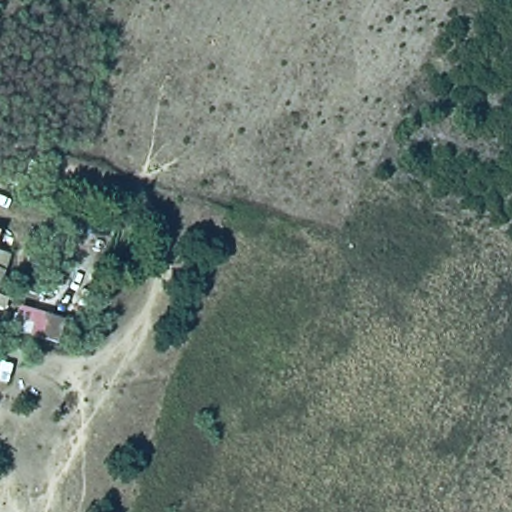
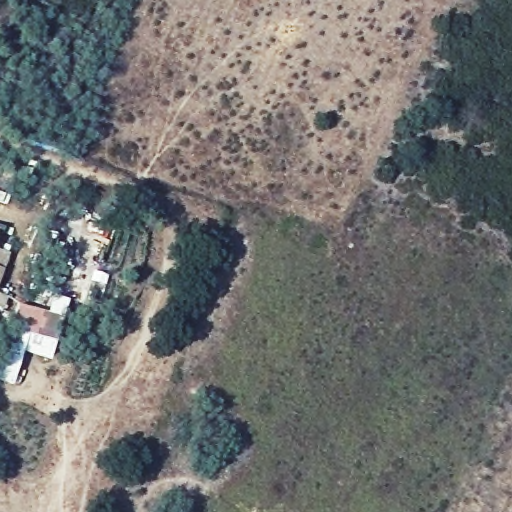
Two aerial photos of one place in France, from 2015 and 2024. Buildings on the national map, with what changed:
unchanged [(13,257),(0,288),(0,251),(13,257)]
unchanged [(64,321),(59,343),(7,336),(13,311),(64,321)]

